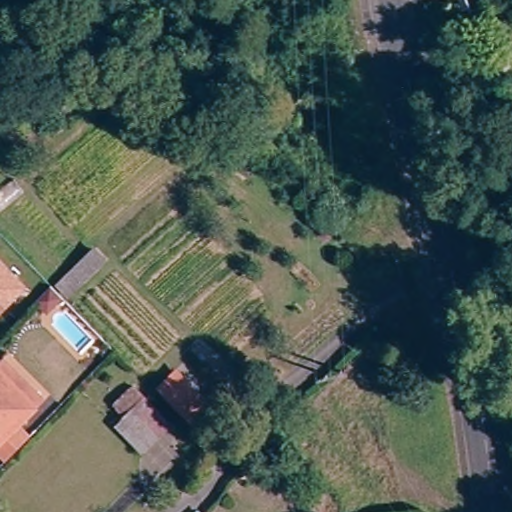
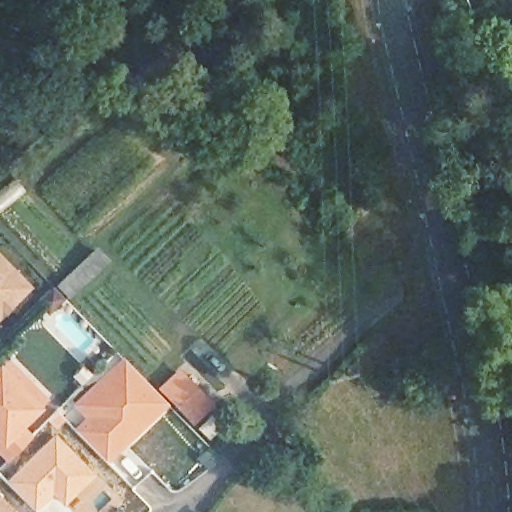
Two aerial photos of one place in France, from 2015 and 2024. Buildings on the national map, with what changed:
unchanged [(39,300),(92,247),(109,262),(53,313),(39,300)]
unchanged [(12,296),(0,308),(0,258),(19,276),(25,282),(12,296)]
new [(109,462),(75,429),(85,418),(72,406),(121,356),(152,384),(170,403),(109,462)]
unchanged [(0,442),(0,369),(0,366),(5,361),(34,388),(47,401),(4,446),(0,450),(0,442)]
unchanged [(210,402),(190,426),(152,384),(175,365),(210,402)]
demolished [(136,453),(114,424),(120,416),(113,404),(134,385),(166,427),(136,453)]
new [(94,475),(62,507),(52,495),(35,510),(5,481),(55,433),(94,475)]
new [(18,512),(0,512),(0,493),(18,512)]

